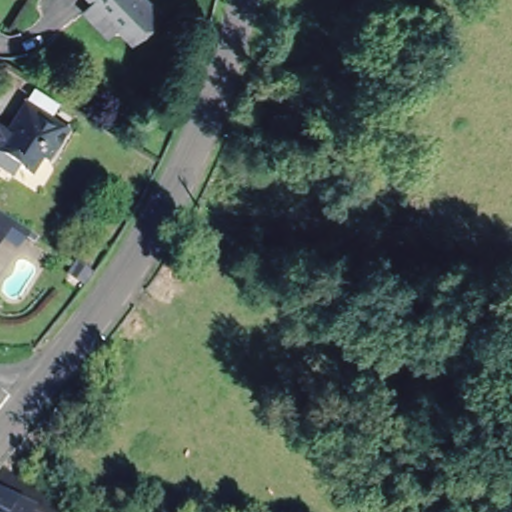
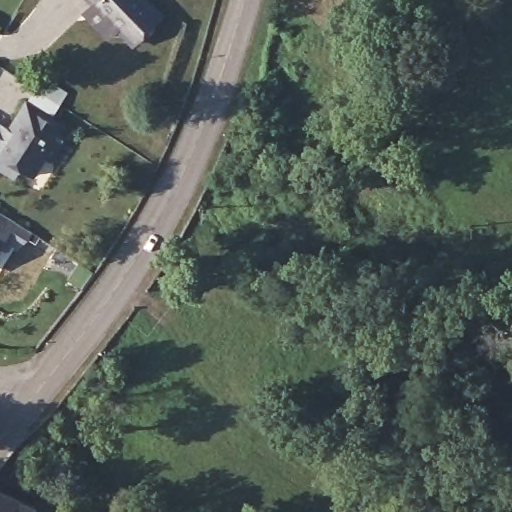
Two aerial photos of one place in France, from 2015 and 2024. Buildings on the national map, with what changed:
unchanged [(84,5),(89,0),(155,0),(161,4),(135,33),(116,16),(107,27),(84,5)]
unchanged [(0,170),(0,125),(7,130),(14,119),(10,117),(22,101),(62,130),(41,160),(37,156),(25,171),(12,163),(6,175),(0,170)]
unchanged [(15,241),(9,248),(0,242),(0,232),(15,241)]
unchanged [(0,512),(0,502),(16,512),(0,512)]

